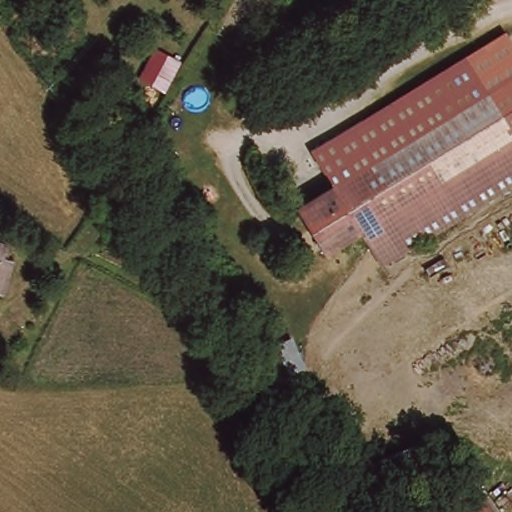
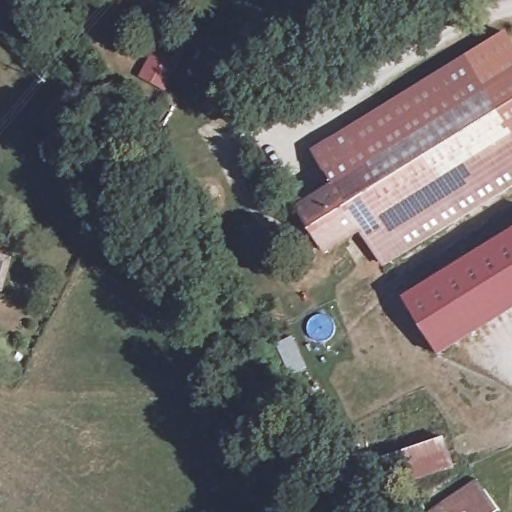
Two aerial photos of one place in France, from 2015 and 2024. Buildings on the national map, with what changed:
unchanged [(491,91),(340,186),(314,151),(507,31),(512,38),(512,125),(491,91)]
unchanged [(165,94),(137,81),(153,45),(181,58),(165,94)]
unchanged [(491,91),(512,125),(512,188),(388,265),(366,231),(367,230),(340,186),(491,91)]
unchanged [(336,187),(340,186),(367,230),(366,231),(365,232),(331,253),(303,208),(336,187)]
new [(512,233),(512,315),(442,359),(406,299),(512,233)]
unchanged [(1,289),(0,288),(0,242),(19,250),(1,289)]
new [(457,470),(391,492),(378,459),(446,437),(457,470)]
new [(499,512),(435,512),(477,484),(499,512)]

